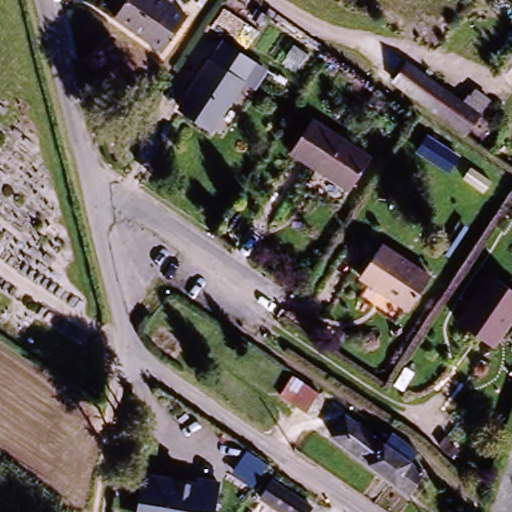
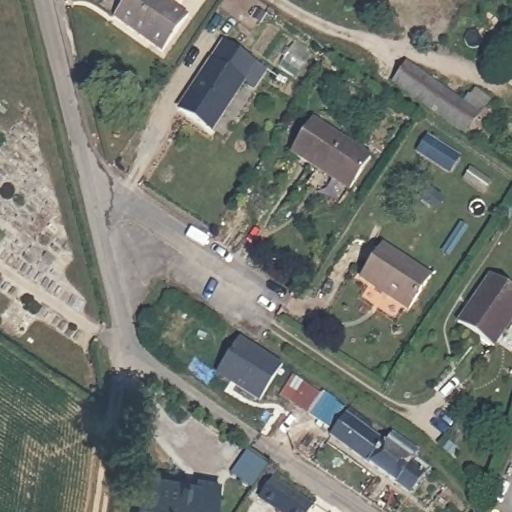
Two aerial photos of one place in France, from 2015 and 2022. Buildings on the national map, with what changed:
unchanged [(169,0),(172,2),(146,41),(114,18),(126,0),(169,0)]
unchanged [(259,68),(213,134),(184,111),(230,45),(259,68)]
unchanged [(492,101),(482,114),(469,133),(458,125),(397,81),(409,64),(468,104),(478,91),(492,101)]
unchanged [(512,71),(512,81),(508,78),(512,71)]
unchanged [(372,159),(351,190),(294,151),(316,121),(372,159)]
unchanged [(430,159),(440,146),(459,160),(449,173),(430,159)]
unchanged [(494,184),(487,196),(466,182),(474,170),(494,184)]
unchanged [(433,280),(411,310),(361,276),(381,248),(433,280)]
unchanged [(458,328),(490,279),(512,293),(512,322),(494,351),(458,328)]
new [(238,342),(254,353),(281,370),(258,405),(234,389),(216,377),(238,342)]
unchanged [(279,398),(292,379),(319,398),(306,417),(279,398)]
unchanged [(388,441),(391,437),(418,459),(412,467),(426,477),(410,499),(331,440),(346,420),(384,448),(388,441)]
unchanged [(144,473),(218,484),(214,512),(137,512),(144,473)]
unchanged [(313,512),(280,512),(263,500),(274,484),(314,510),(313,512)]

